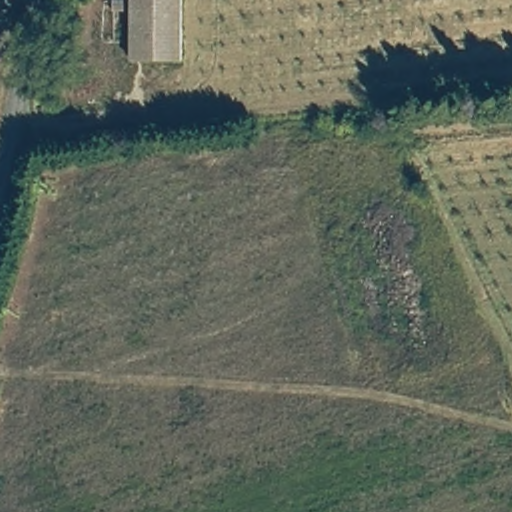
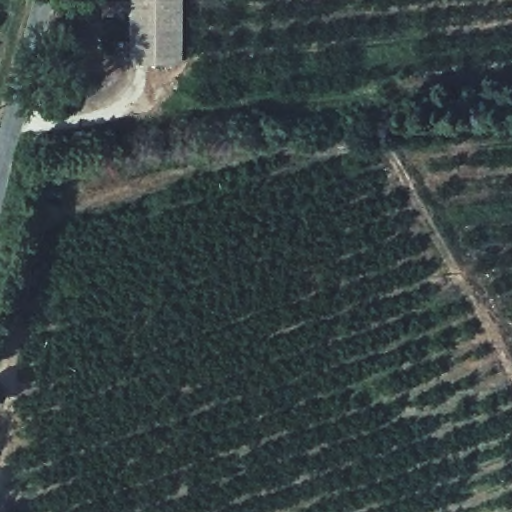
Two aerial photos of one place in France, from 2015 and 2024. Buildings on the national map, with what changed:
unchanged [(179,68),(134,69),(135,0),(181,0),(179,68)]

